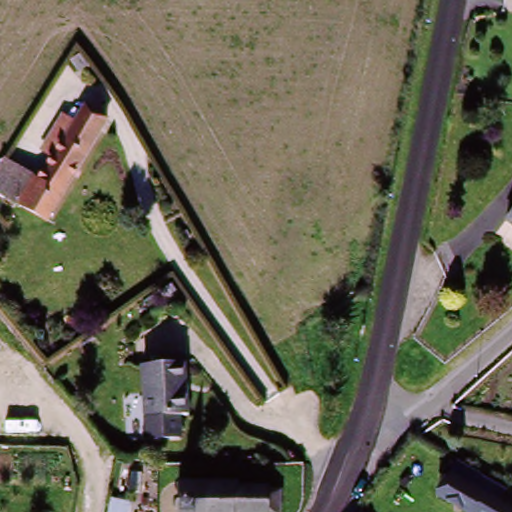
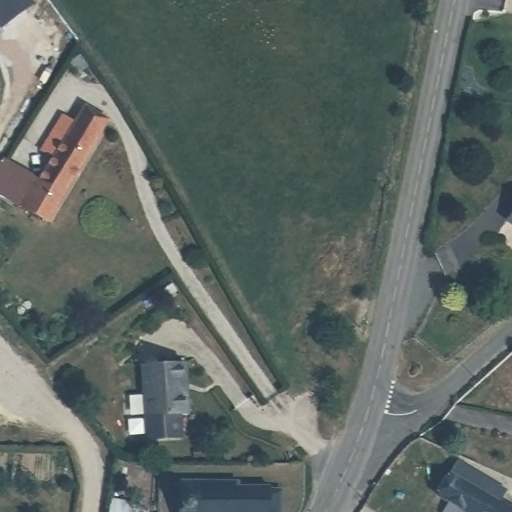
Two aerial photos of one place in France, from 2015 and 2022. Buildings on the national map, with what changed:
new [(32,6),(0,29),(0,0),(29,0),(32,6)]
unchanged [(44,227),(0,202),(0,175),(4,169),(35,187),(82,104),(106,118),(44,227)]
unchanged [(512,217),(512,219),(511,218),(512,217)]
unchanged [(140,369),(182,367),(184,419),(142,420),(140,369)]
unchanged [(187,419),(187,442),(143,444),(139,422),(187,419)]
unchanged [(452,474),(461,461),(497,486),(487,499),(507,512),(458,512),(435,496),(452,474)]
unchanged [(267,497),(281,498),(280,512),(175,512),(175,483),(234,484),(235,492),(267,492),(267,497)]

